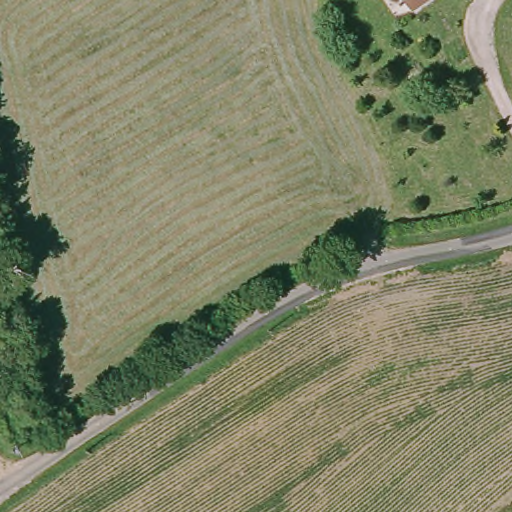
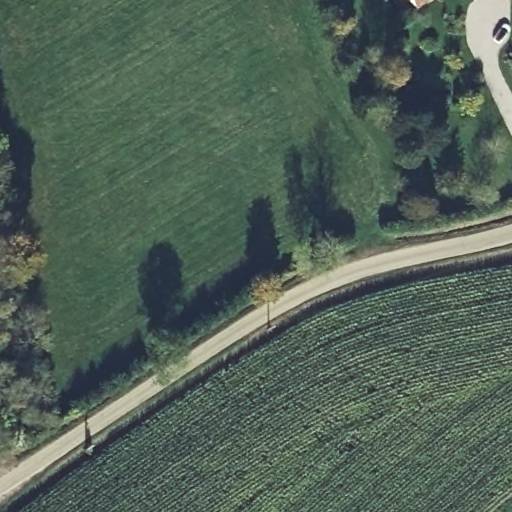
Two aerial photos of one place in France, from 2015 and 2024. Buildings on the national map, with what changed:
unchanged [(404,0),(413,0),(406,4),(404,0)]

